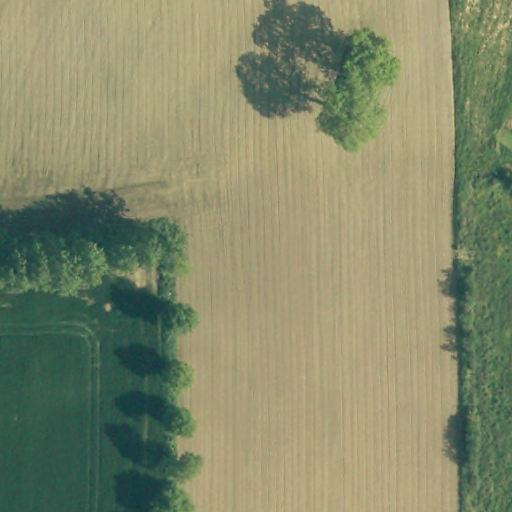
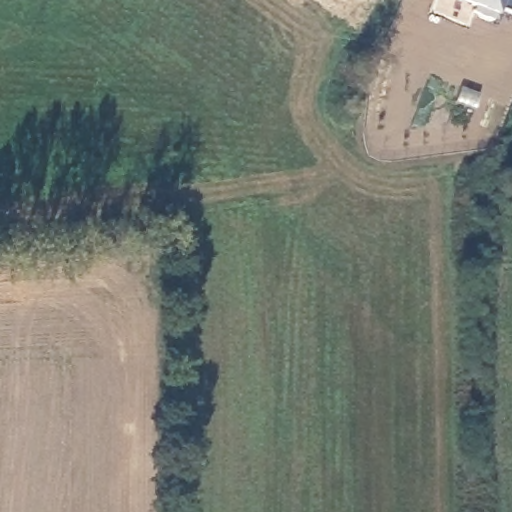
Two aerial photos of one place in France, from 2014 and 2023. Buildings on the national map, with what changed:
new [(512,12),(498,6),(496,12),(493,22),(475,14),(478,7),(461,0),(512,0),(512,12)]

